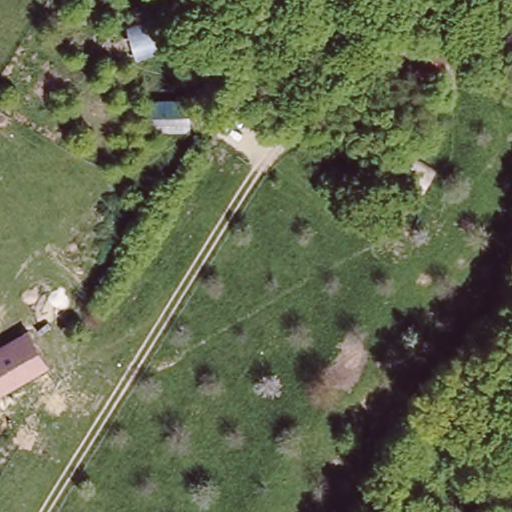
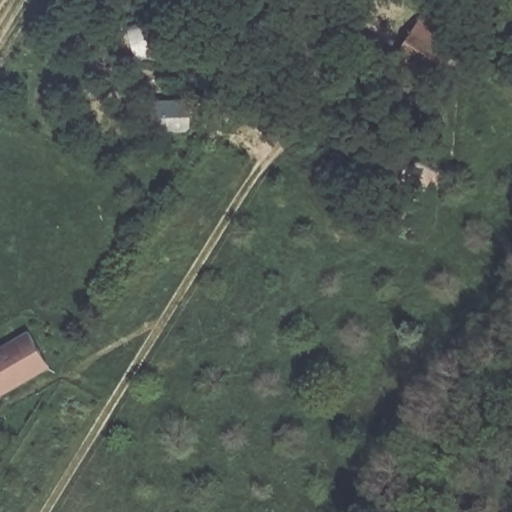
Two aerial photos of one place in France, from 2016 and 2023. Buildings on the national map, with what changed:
unchanged [(48,367),(0,394),(0,345),(27,329),(48,367)]

